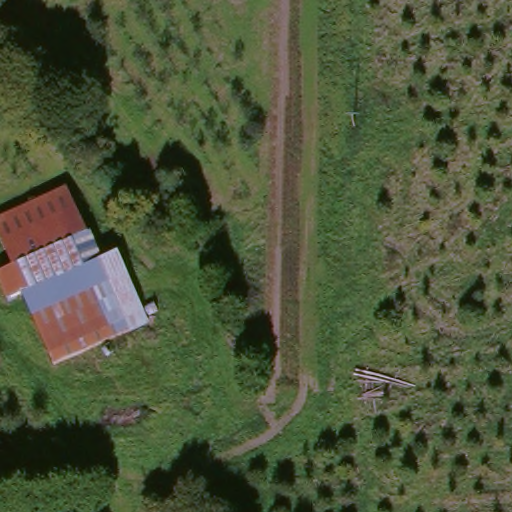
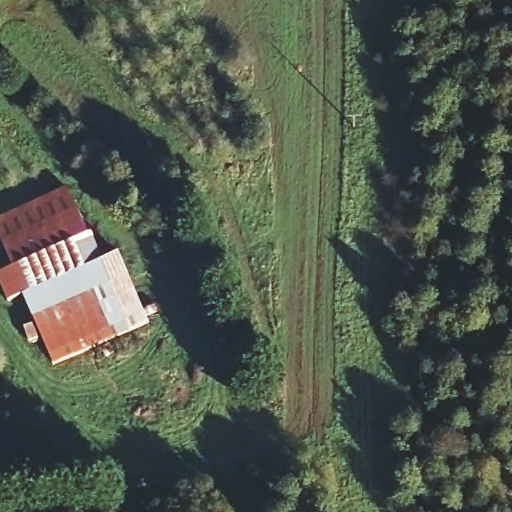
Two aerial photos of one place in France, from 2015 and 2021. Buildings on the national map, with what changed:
unchanged [(138,330),(63,362),(47,330),(31,337),(0,266),(16,257),(0,222),(0,215),(73,181),(138,330)]

